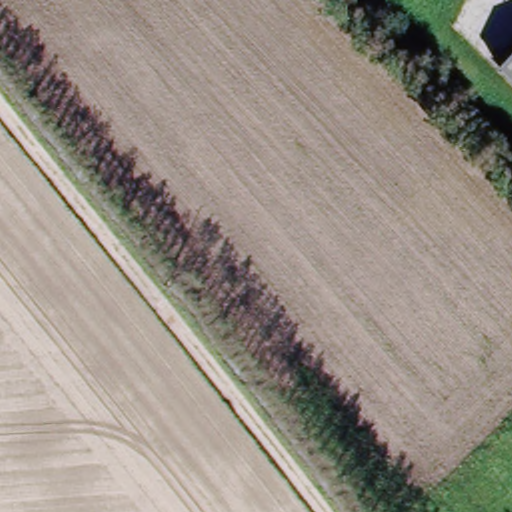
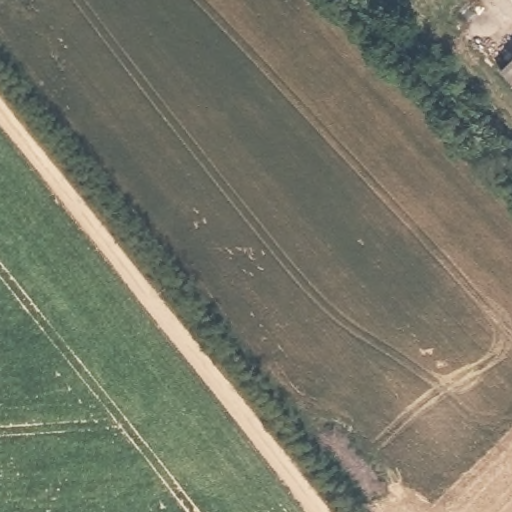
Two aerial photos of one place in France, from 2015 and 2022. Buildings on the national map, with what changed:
unchanged [(512,64),(512,79),(505,72),(512,64)]

